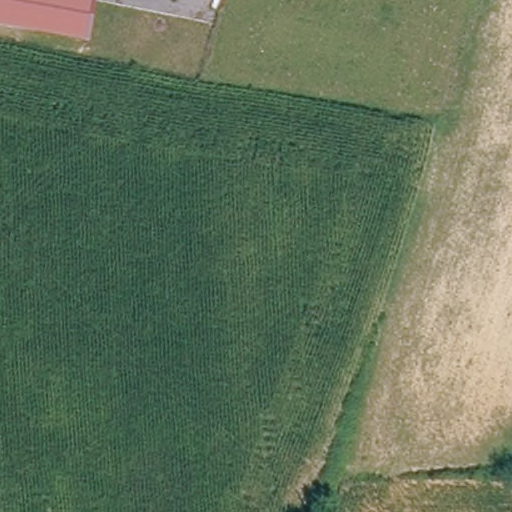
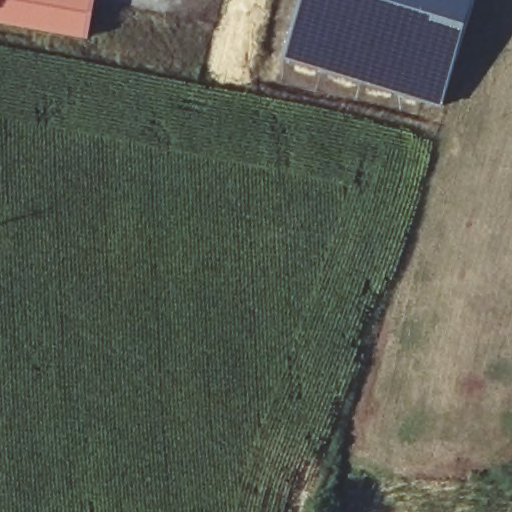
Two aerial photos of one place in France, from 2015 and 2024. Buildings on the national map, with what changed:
unchanged [(90,0),(81,36),(0,22),(0,0),(90,0)]
new [(281,58),(299,0),(474,0),(441,104),(281,58)]

